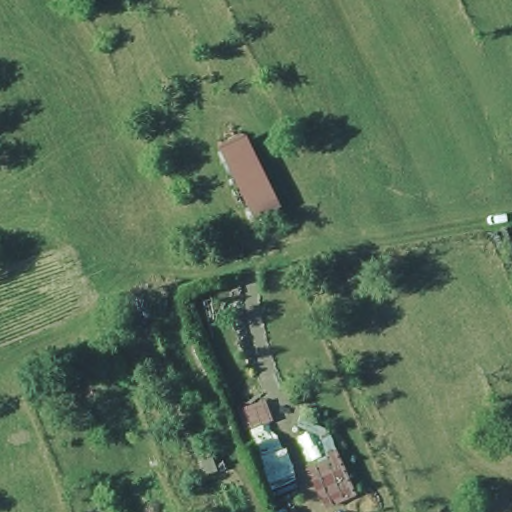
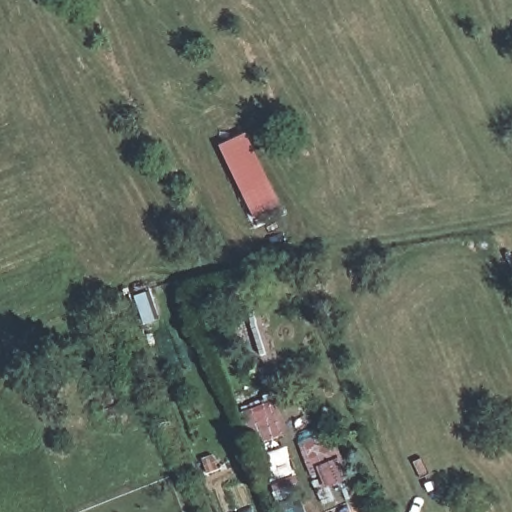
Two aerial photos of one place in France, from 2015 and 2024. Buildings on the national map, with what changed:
unchanged [(273,185),(244,200),(220,152),(250,136),(273,185)]

